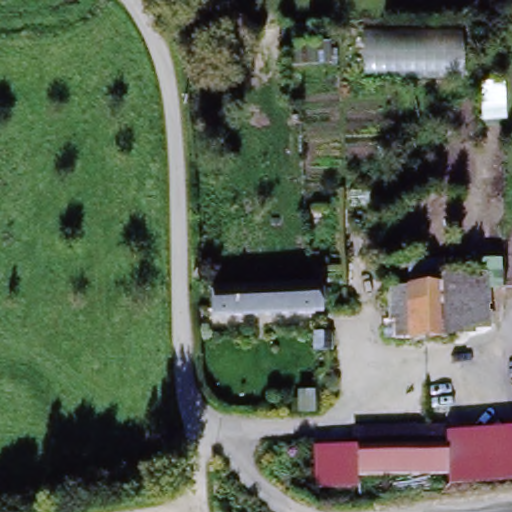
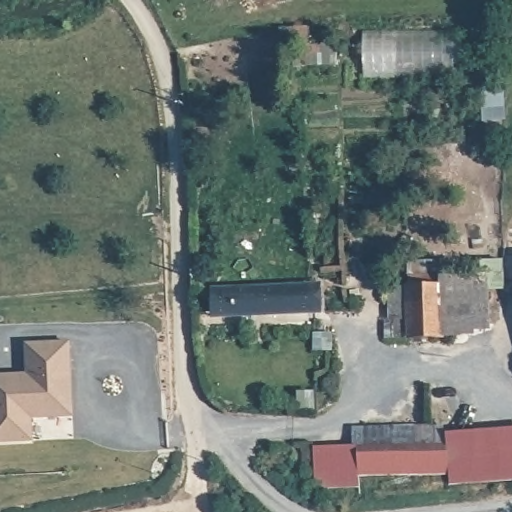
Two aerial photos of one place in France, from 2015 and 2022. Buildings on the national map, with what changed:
unchanged [(281,27),(310,25),(311,39),(282,40),(281,27)]
unchanged [(322,312),(207,317),(206,286),(205,262),(227,261),(230,287),(321,285),(322,312)]
unchanged [(476,330),(475,335),(441,335),(441,339),(405,338),(384,338),(383,324),(387,323),(385,286),(405,284),(440,283),(440,274),(488,272),(491,332),(476,330)]
new [(27,345),(70,343),(73,416),(45,417),(44,411),(31,412),(32,440),(0,442),(0,376),(28,375),(27,345)]
unchanged [(478,483),(469,477),(449,480),(449,475),(358,472),(325,476),(323,446),(355,442),(361,442),(361,426),(445,432),(512,427),(512,480),(478,483)]

